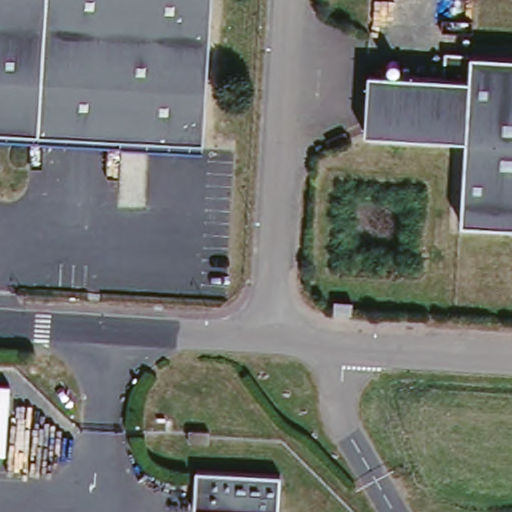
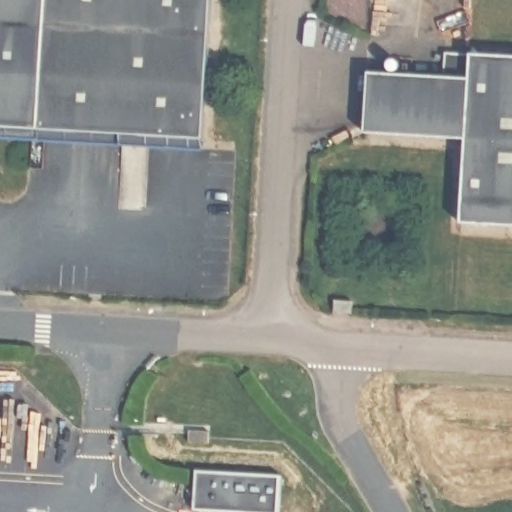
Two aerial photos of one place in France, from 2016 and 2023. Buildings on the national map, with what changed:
unchanged [(39,131),(0,127),(0,0),(46,0),(39,131)]
unchanged [(205,141),(39,131),(46,0),(213,0),(205,141)]
unchanged [(468,77),(471,51),(512,53),(512,228),(459,225),(464,138),(363,134),(368,71),(468,77)]
unchanged [(278,512),(211,512),(193,511),(196,471),(281,478),(278,512)]

